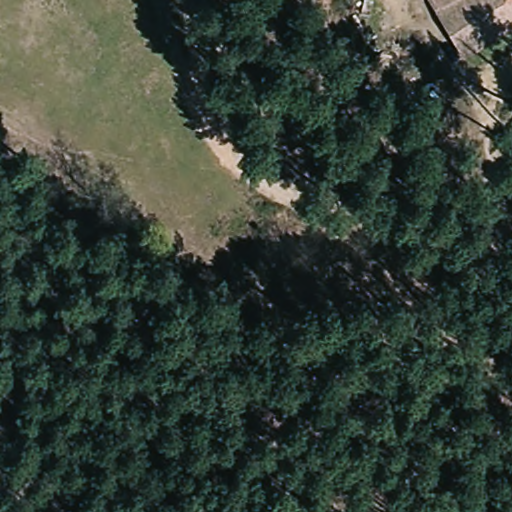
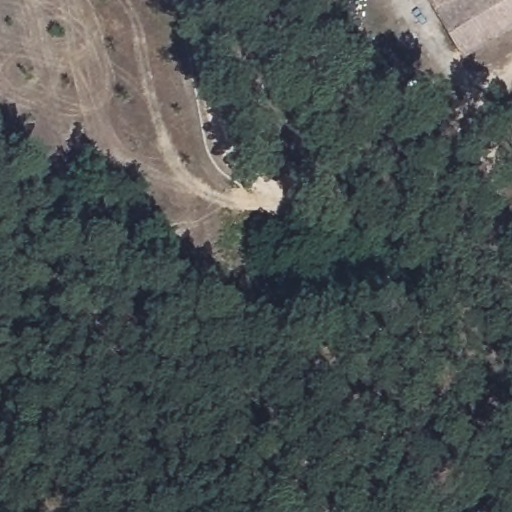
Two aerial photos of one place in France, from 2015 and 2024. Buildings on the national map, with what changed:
unchanged [(433,0),(512,0),(512,35),(470,61),(433,0)]

